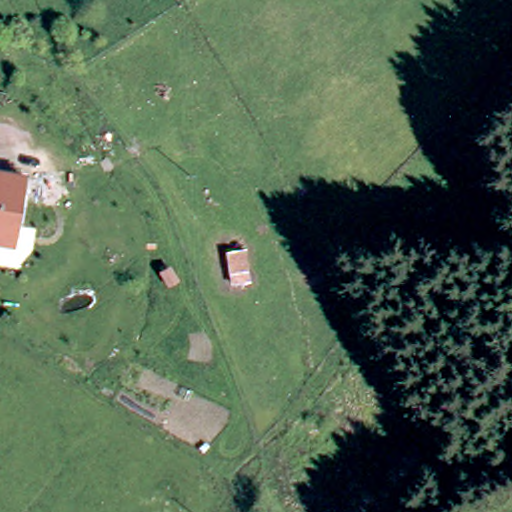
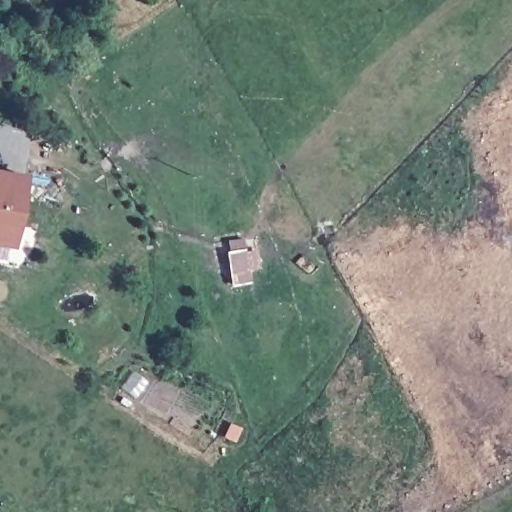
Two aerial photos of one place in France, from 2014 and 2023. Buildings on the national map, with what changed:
unchanged [(12,248),(0,247),(0,177),(22,180),(12,248)]

